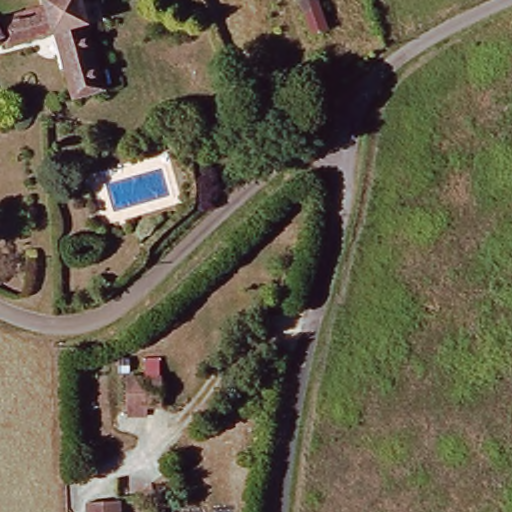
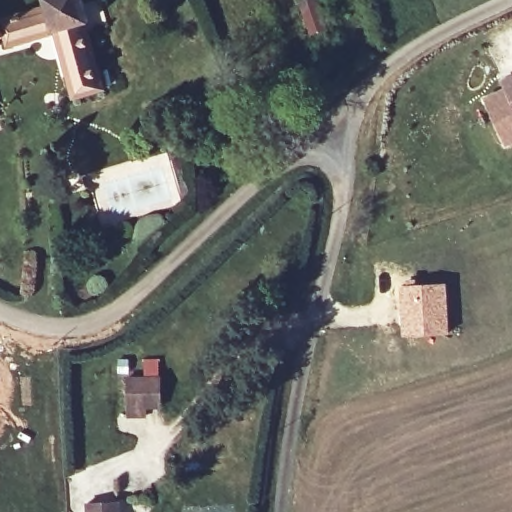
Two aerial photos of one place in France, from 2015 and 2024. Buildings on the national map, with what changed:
unchanged [(66,0),(81,0),(89,28),(56,38),(48,11),(47,6),(66,0)]
unchanged [(328,36),(314,41),(300,8),(316,1),(328,36)]
unchanged [(15,51),(5,26),(48,11),(56,38),(15,51)]
unchanged [(10,48),(0,51),(0,27),(1,26),(10,48)]
unchanged [(75,106),(56,38),(89,28),(108,97),(75,106)]
new [(512,76),(512,103),(502,81),(512,76)]
new [(447,282),(450,333),(402,338),(398,286),(447,282)]
unchanged [(132,418),(131,379),(149,378),(162,378),(163,406),(150,407),(150,418),(132,418)]
unchanged [(85,509),(116,507),(116,512),(85,512),(85,509)]

